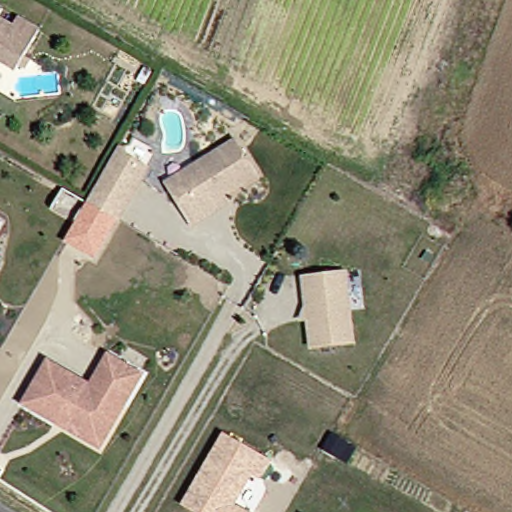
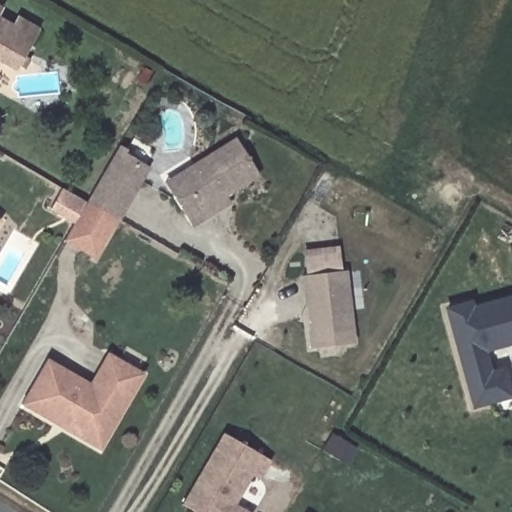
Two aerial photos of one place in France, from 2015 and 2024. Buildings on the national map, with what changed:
unchanged [(2,10),(0,13),(0,9),(2,10)]
unchanged [(11,28),(18,19),(40,31),(16,71),(0,62),(0,21),(11,28)]
unchanged [(209,216),(195,224),(176,194),(169,182),(182,174),(193,167),(239,139),(261,175),(234,191),(229,194),(233,201),(209,216)]
unchanged [(90,199),(112,160),(118,149),(148,166),(142,177),(120,217),(112,212),(90,199)]
new [(112,212),(120,217),(97,260),(64,242),(90,199),(112,212)]
unchanged [(2,223),(0,225),(0,222),(2,223)]
unchanged [(312,348),(303,277),(345,272),(354,342),(312,348)]
new [(490,371),(505,367),(512,395),(512,397),(471,410),(442,309),(472,302),(473,307),(512,295),(512,345),(486,353),(490,371)]
unchanged [(57,423),(24,405),(49,360),(91,384),(109,353),(145,373),(127,405),(103,449),(57,423)]
unchanged [(182,506),(223,434),(270,460),(258,481),(250,478),(235,505),(248,512),(192,512),(182,506)]

